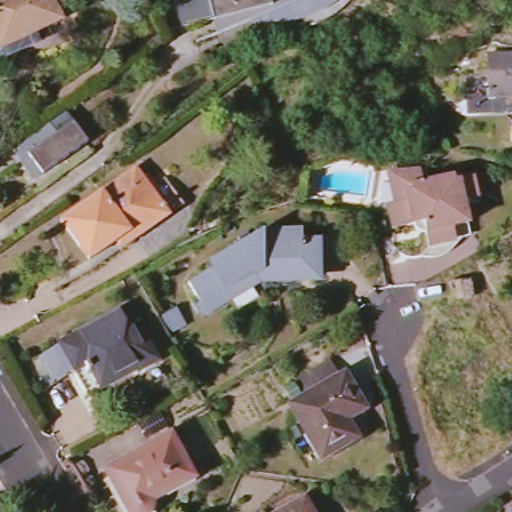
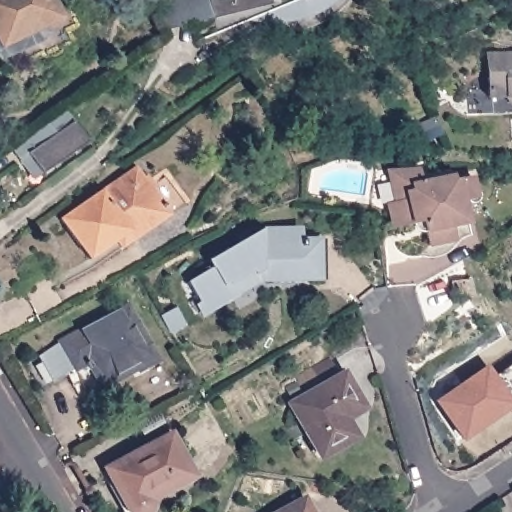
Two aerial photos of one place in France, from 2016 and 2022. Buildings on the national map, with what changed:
unchanged [(52,0),(60,18),(33,31),(38,41),(7,56),(0,41),(0,0),(52,0)]
unchanged [(168,29),(162,0),(212,0),(215,18),(168,29)]
unchanged [(344,4),(341,7),(338,9),(335,11),(331,14),(327,16),(323,17),(320,19),(310,21),(300,22),(296,23),(292,23),(288,23),(283,23),(278,22),(275,22),(272,22),(268,20),(220,39),(215,18),(212,0),(349,0),(347,2),(344,4)]
unchanged [(512,102),(511,102),(507,95),(488,95),(488,52),(512,51),(512,102)]
unchanged [(78,122),(84,120),(98,141),(52,172),(44,162),(32,168),(16,146),(22,141),(60,114),(68,108),(78,122)]
unchanged [(440,121),(444,132),(430,138),(423,125),(439,119),(440,121)]
unchanged [(172,217),(135,242),(130,235),(93,261),(57,218),(102,187),(137,164),(172,217)]
unchanged [(428,182),(458,177),(459,179),(475,176),(478,191),(472,200),(465,201),(470,222),(455,226),(457,239),(432,245),(425,217),(415,219),(417,224),(395,228),(392,211),(397,201),(392,175),(425,169),(428,182)]
unchanged [(303,280),(263,281),(205,312),(190,285),(213,272),(210,264),(267,232),(267,237),(304,238),(303,280)]
unchanged [(38,360),(44,357),(65,342),(133,306),(162,360),(143,370),(138,362),(102,382),(92,363),(57,382),(49,386),(38,360)]
unchanged [(162,315),(175,307),(183,323),(170,331),(162,315)]
new [(495,375),(512,365),(512,403),(460,432),(439,393),(490,365),(495,375)]
unchanged [(293,414),(306,407),(296,387),(331,368),(342,388),(346,386),(362,419),(351,426),(361,445),(322,467),(293,414)]
unchanged [(192,479),(155,501),(156,505),(157,508),(156,512),(131,512),(110,473),(173,436),(192,479)]
unchanged [(309,512),(280,512),(302,500),(309,512)]

